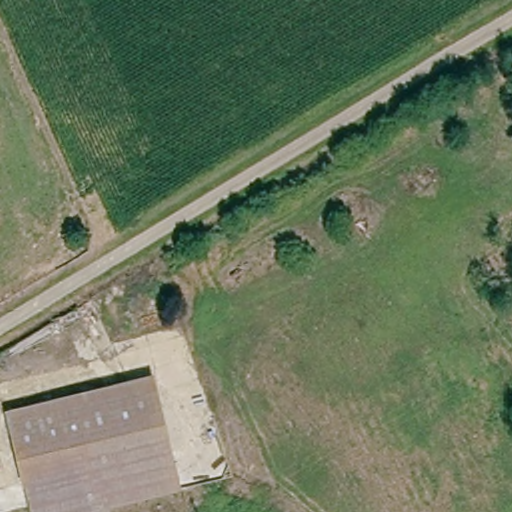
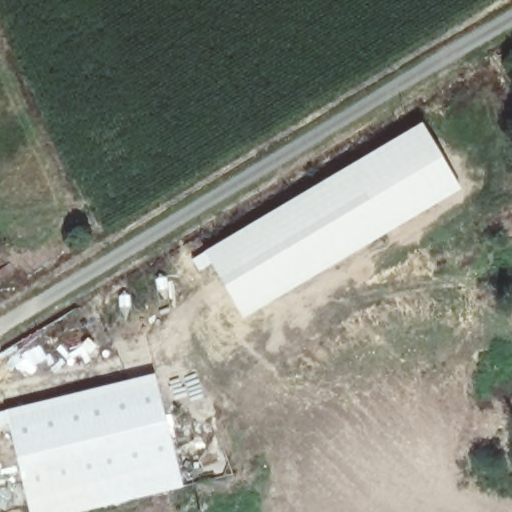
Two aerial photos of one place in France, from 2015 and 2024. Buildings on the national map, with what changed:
new [(422,122),(462,191),(242,320),(211,264),(199,271),(192,259),(422,122)]
unchanged [(77,512),(37,512),(7,417),(154,381),(180,493),(77,512)]

